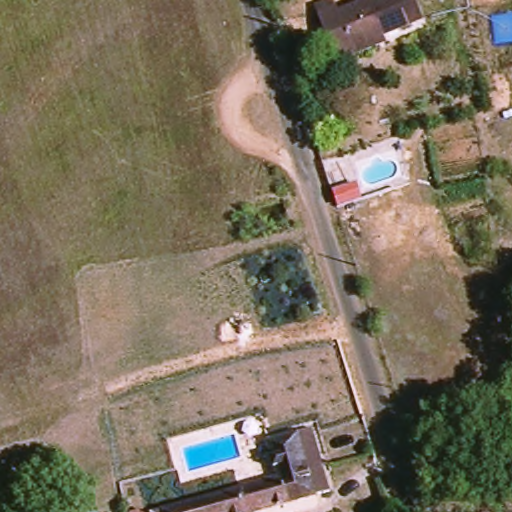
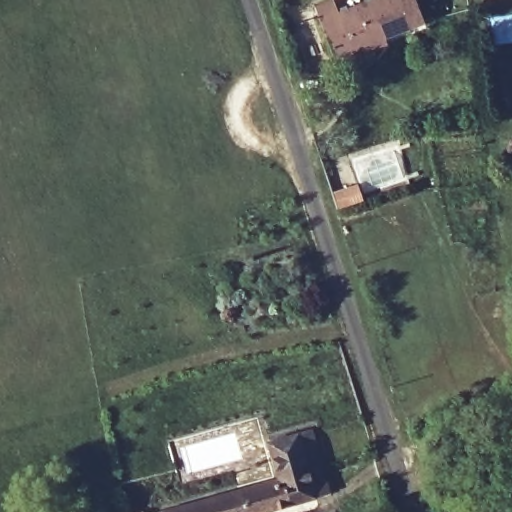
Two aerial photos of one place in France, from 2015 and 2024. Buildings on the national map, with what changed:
unchanged [(320,14),(336,6),(339,11),(365,0),(416,0),(425,21),(355,51),(352,41),(335,49),(320,14)]
unchanged [(272,512),(152,512),(276,476),(266,439),(314,426),(332,496),(272,512)]

